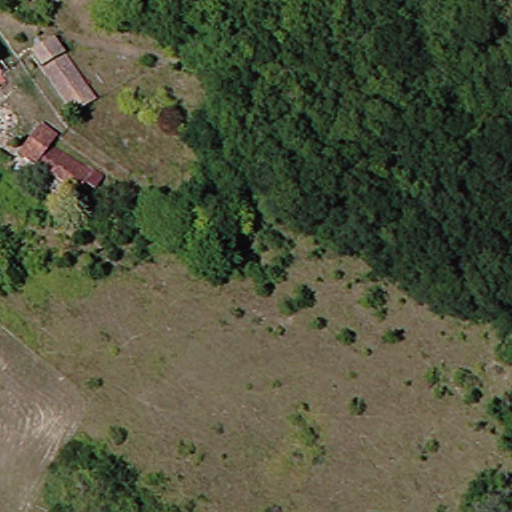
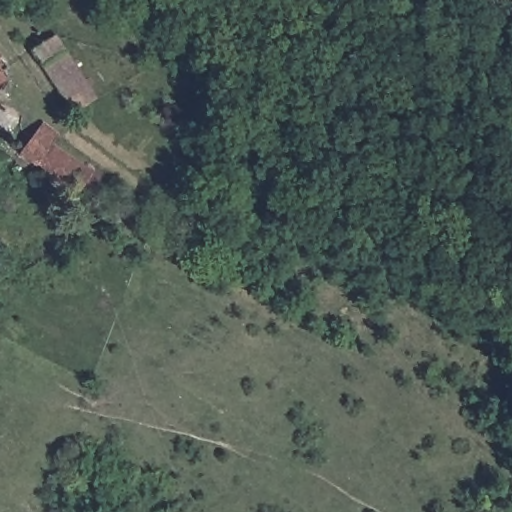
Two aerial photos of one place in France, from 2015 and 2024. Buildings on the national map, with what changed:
unchanged [(89,98),(69,113),(29,56),(49,41),(89,98)]
unchanged [(4,79),(0,82),(0,74),(4,79)]
unchanged [(48,147),(86,174),(74,195),(19,159),(39,128),(52,138),(48,147)]

